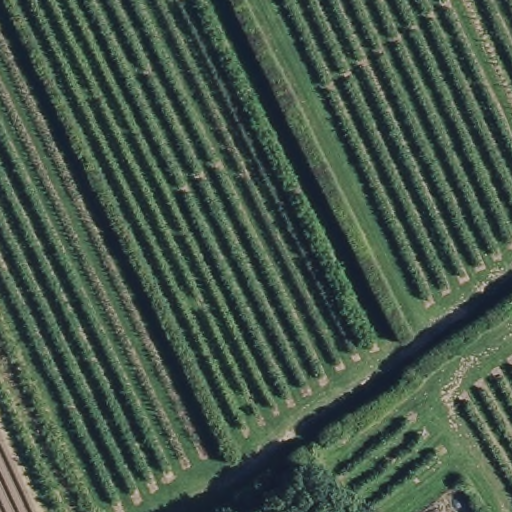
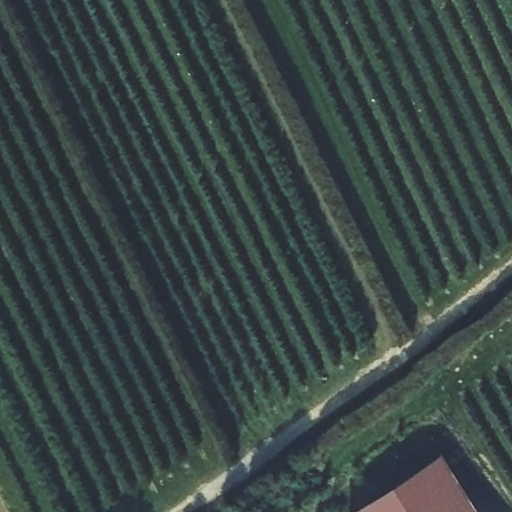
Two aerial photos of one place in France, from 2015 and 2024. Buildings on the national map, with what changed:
new [(482,512),(353,512),(352,511),(442,451),(482,512)]

